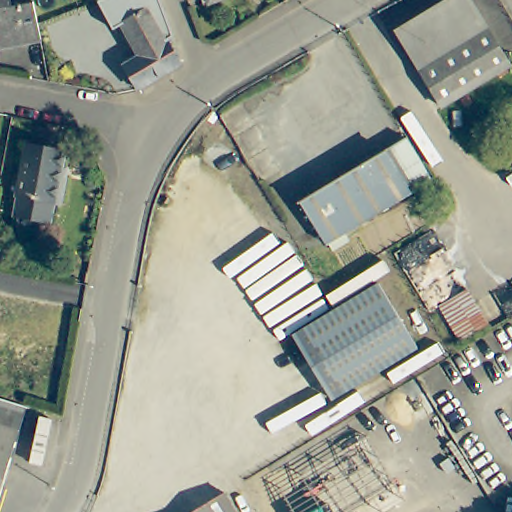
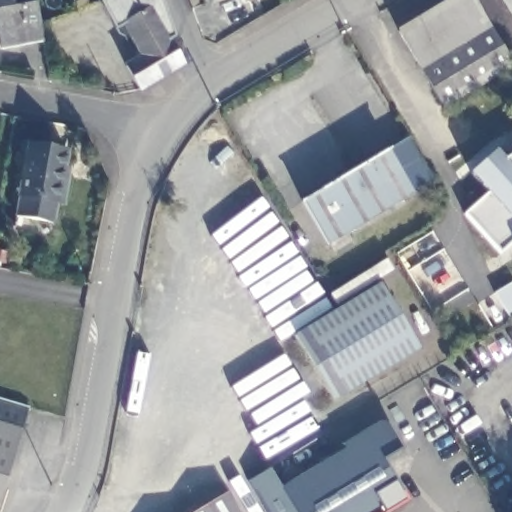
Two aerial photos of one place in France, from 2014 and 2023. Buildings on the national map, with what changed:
unchanged [(43,42),(40,43),(4,51),(0,30),(0,0),(14,0),(14,1),(17,0),(35,0),(39,22),(43,42)]
unchanged [(211,0),(220,0),(212,2),(211,0)]
unchanged [(442,102),(398,27),(443,0),(472,0),(510,62),(442,102)]
unchanged [(182,62),(139,87),(137,87),(124,64),(140,55),(122,21),(149,6),(182,62)]
unchanged [(430,177),(409,189),(384,147),(405,135),(430,177)]
unchanged [(64,199),(61,217),(22,210),(25,192),(24,192),(34,141),(72,147),(69,162),(75,164),(73,174),(68,200),(64,199)]
unchanged [(409,189),(325,239),(300,196),(384,147),(409,189)]
new [(463,212),(486,191),(468,171),(494,149),(502,157),(512,152),(512,242),(502,252),(463,212)]
unchanged [(417,342),(331,393),(291,330),(376,278),(417,342)]
unchanged [(28,403),(0,503),(0,395),(28,403)]
new [(249,481),(270,468),(281,486),(342,448),(339,443),(373,423),(382,421),(400,450),(382,461),(406,502),(390,512),(268,512),(249,481)]
demolished [(407,500),(387,512),(296,512),(282,487),(368,436),(407,500)]
unchanged [(237,512),(184,512),(221,488),(237,512)]

